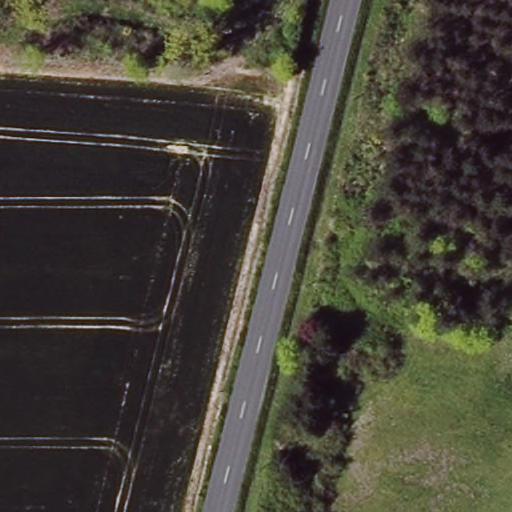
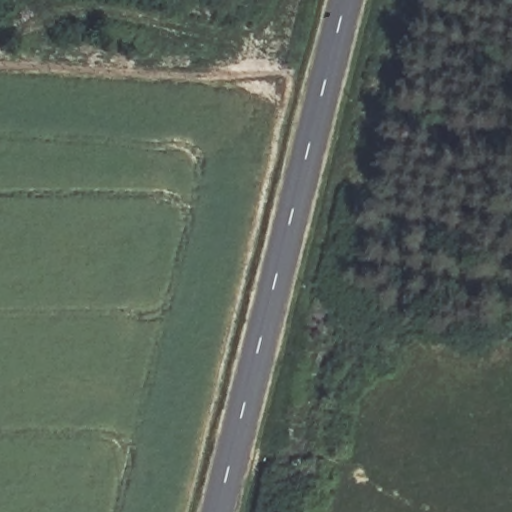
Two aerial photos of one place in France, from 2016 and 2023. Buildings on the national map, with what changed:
[]

